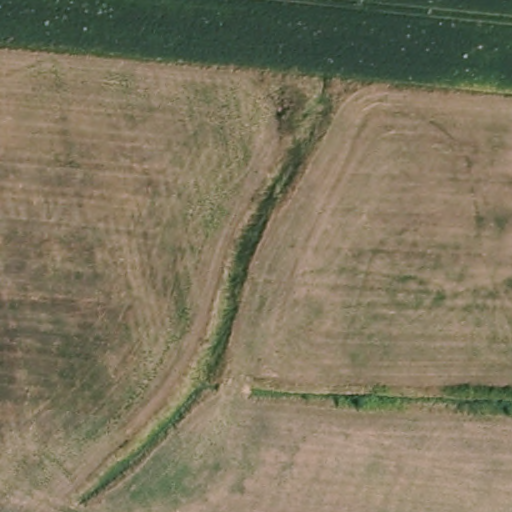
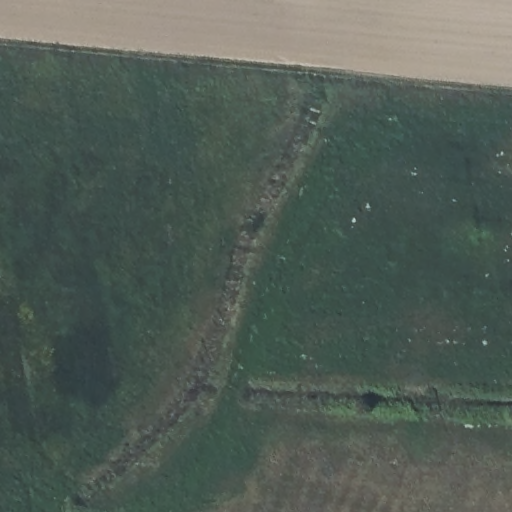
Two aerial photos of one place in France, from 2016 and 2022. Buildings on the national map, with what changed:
[]

